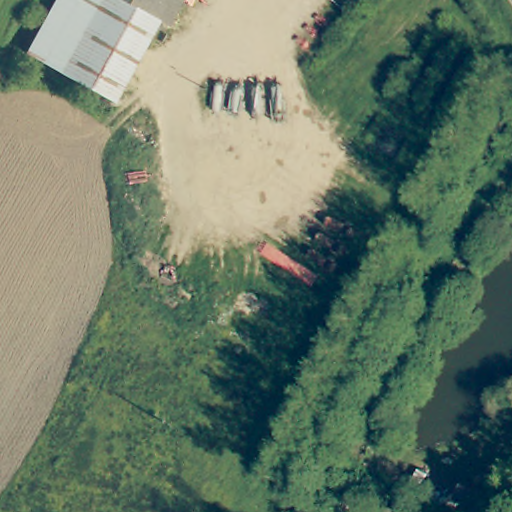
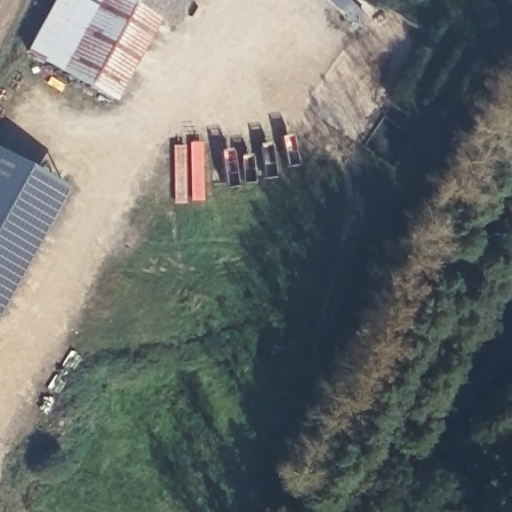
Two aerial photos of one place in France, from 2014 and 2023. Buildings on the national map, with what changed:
unchanged [(52,0),(166,0),(111,98),(24,50),(52,0)]
new [(67,186),(0,307),(0,152),(67,186)]

